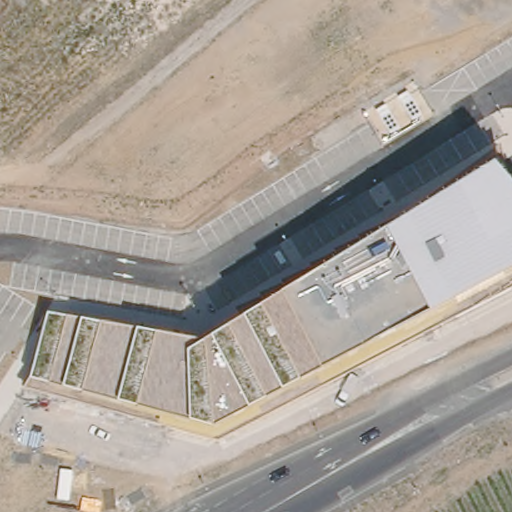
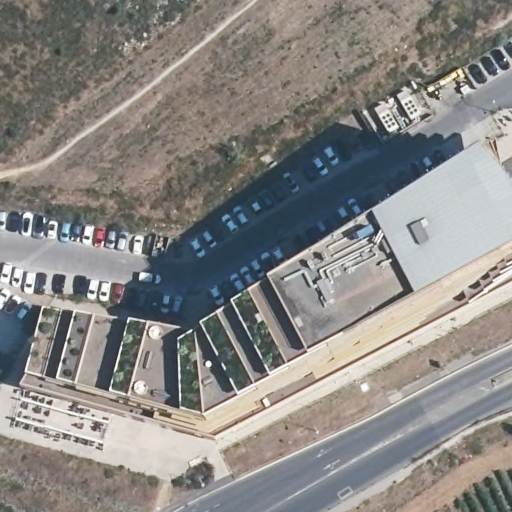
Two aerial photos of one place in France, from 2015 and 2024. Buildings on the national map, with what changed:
unchanged [(216,441),(25,388),(30,378),(47,314),(81,321),(138,332),(200,345),(210,340),(241,320),(278,297),(381,235),(490,169),(512,194),(512,287),(216,441)]

